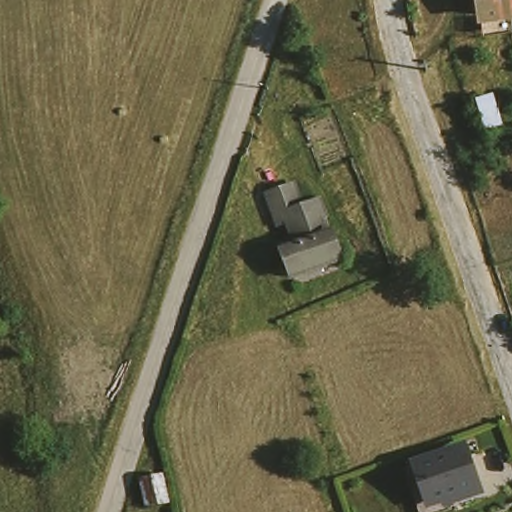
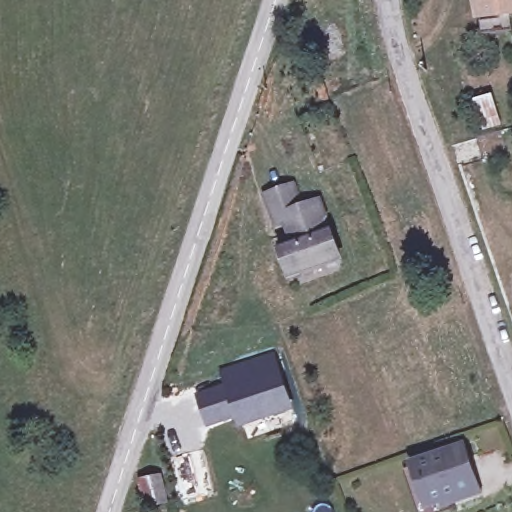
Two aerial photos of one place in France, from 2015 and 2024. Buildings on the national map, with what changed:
unchanged [(481,12),(480,0),(512,0),(512,8),(481,12)]
unchanged [(277,272),(267,245),(280,241),(274,222),(264,225),(253,197),(281,187),(290,208),(307,202),(313,218),(312,228),(315,236),(323,258),(326,264),(313,269),(296,275),(280,280),(277,272)]
new [(222,383),(217,368),(273,348),(295,408),(236,429),(233,420),(205,429),(194,392),(222,383)]
unchanged [(465,443),(482,495),(425,512),(408,464),(465,443)]
unchanged [(161,483),(166,509),(144,512),(140,486),(161,483)]

